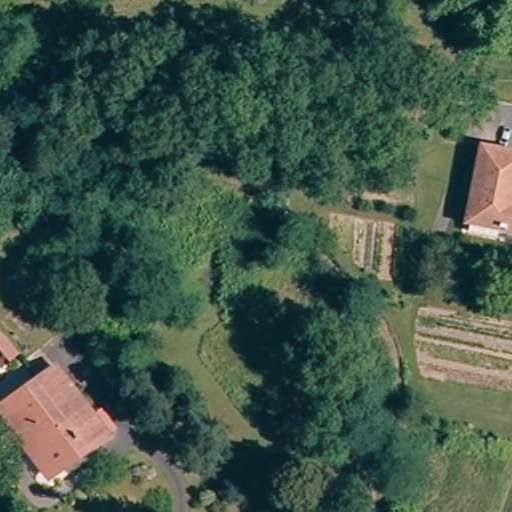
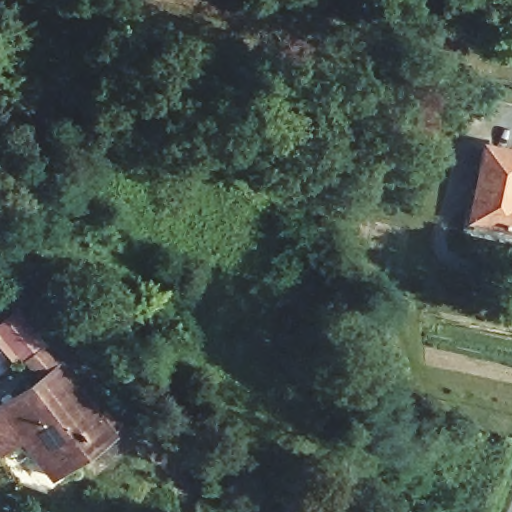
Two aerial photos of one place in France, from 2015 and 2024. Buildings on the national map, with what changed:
unchanged [(481,154),(512,161),(512,201),(509,216),(512,218),(512,236),(507,235),(464,222),(481,154)]
unchanged [(0,333),(11,350),(1,357),(0,354),(0,333)]
unchanged [(98,420),(106,412),(120,430),(112,437),(56,479),(22,438),(0,456),(0,410),(56,370),(98,420)]

